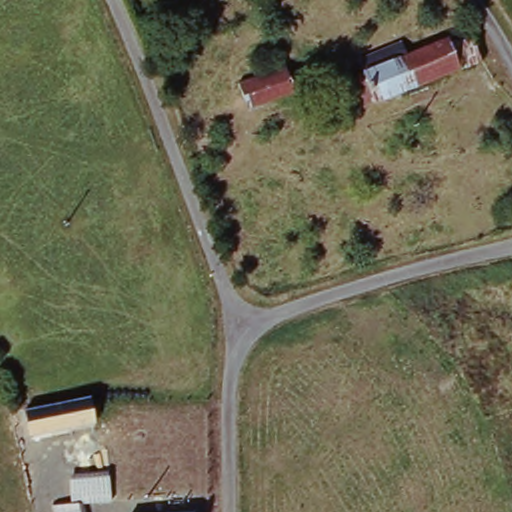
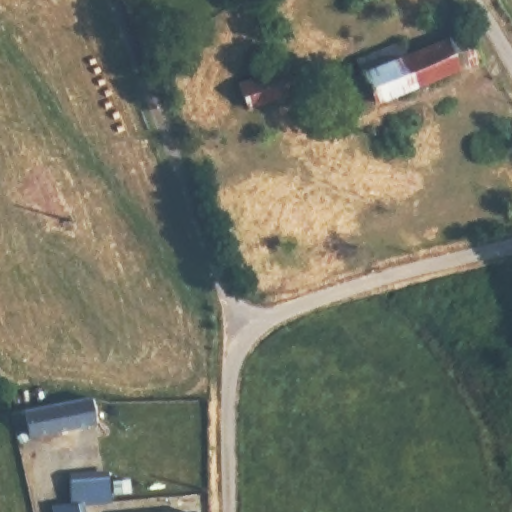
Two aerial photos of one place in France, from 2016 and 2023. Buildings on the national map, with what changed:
unchanged [(354,81),(368,75),(363,61),(404,44),(409,58),(474,31),(485,61),(379,103),(378,99),(364,105),(354,81)]
unchanged [(285,72),(294,95),(247,111),(239,89),(254,83),(285,72)]
unchanged [(90,426),(24,440),(19,416),(85,402),(90,426)]

